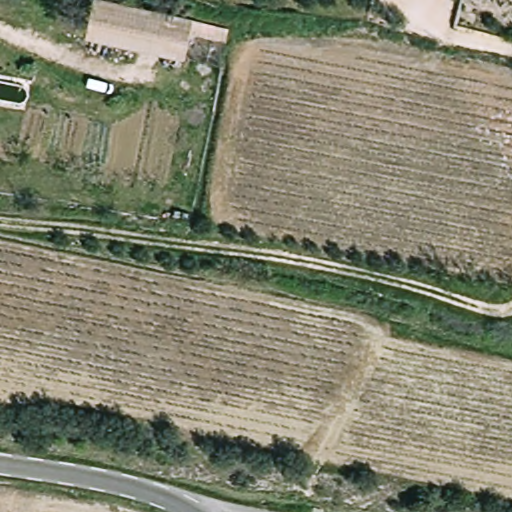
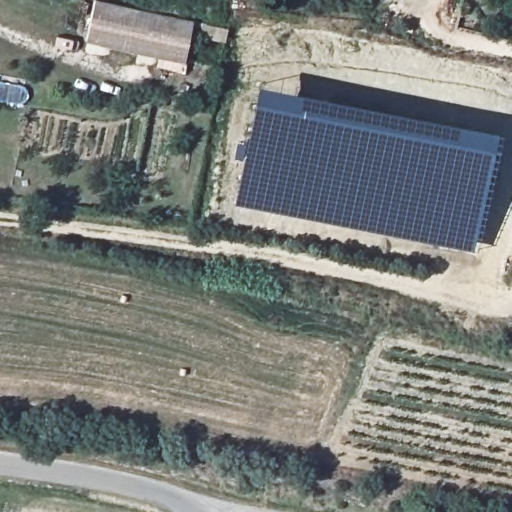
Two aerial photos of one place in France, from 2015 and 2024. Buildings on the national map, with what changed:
unchanged [(233,25),(230,43),(197,35),(191,62),(89,38),(100,0),(122,0),(233,25)]
new [(235,200),(257,83),(503,133),(476,251),(235,200)]

